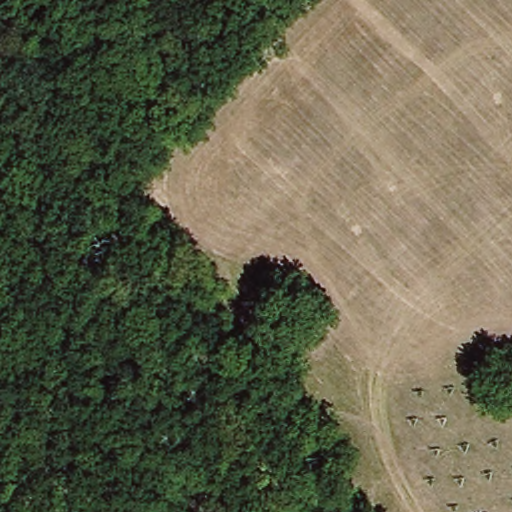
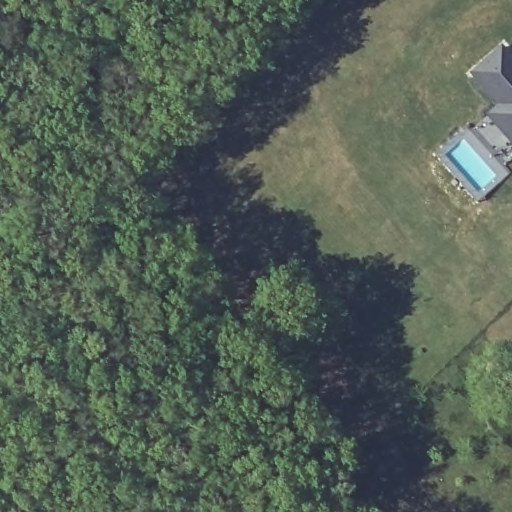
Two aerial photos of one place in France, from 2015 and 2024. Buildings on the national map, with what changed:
new [(486,115),(497,106),(469,73),(501,46),(512,59),(512,146),(486,115)]

